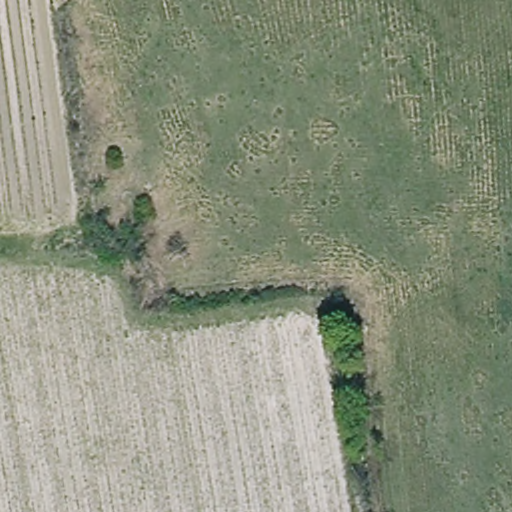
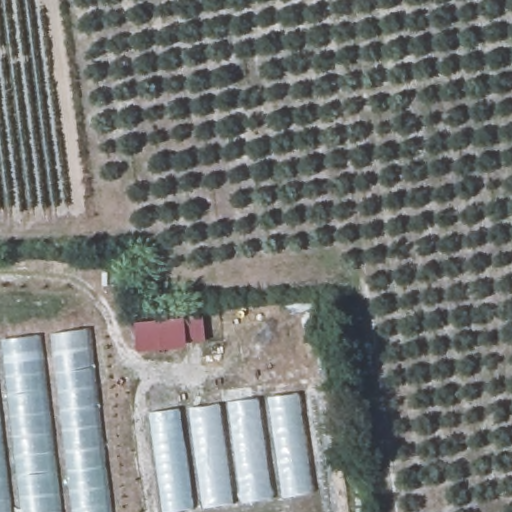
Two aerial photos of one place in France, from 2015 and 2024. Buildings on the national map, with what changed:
new [(206,341),(187,344),(187,348),(137,351),(135,321),(204,316),(206,341)]
new [(0,512),(0,340),(94,327),(117,512),(0,512)]
new [(304,392),(318,491),(180,512),(163,512),(149,412),(304,392)]

